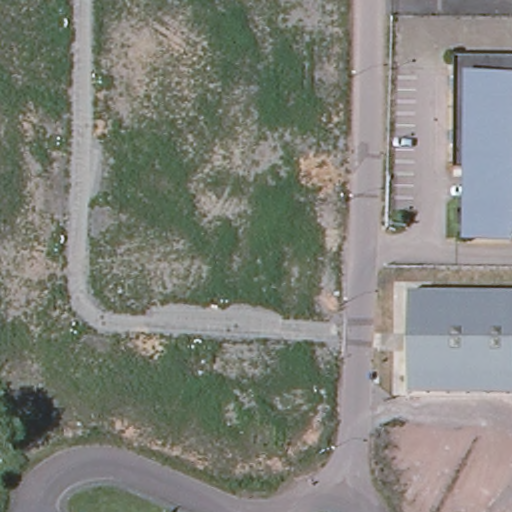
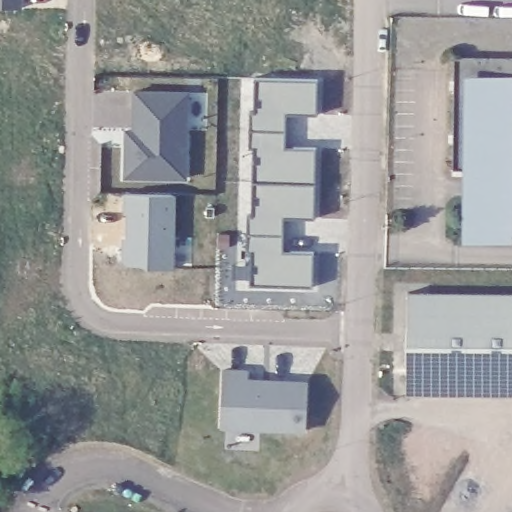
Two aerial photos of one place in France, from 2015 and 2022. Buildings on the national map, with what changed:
new [(0,11),(0,0),(20,0),(20,12),(0,11)]
unchanged [(512,237),(468,236),(469,194),(481,195),(482,168),(452,168),(454,56),(512,58),(512,237)]
new [(250,111),(254,110),(255,76),(317,78),(316,113),(285,112),(285,130),(249,128),(250,111)]
new [(187,94),(188,181),(125,180),(125,133),(133,133),(133,93),(187,94)]
new [(249,128),(285,130),(285,146),(315,146),(314,182),(252,180),(253,146),(248,146),(249,128)]
new [(247,214),(252,214),(252,180),(314,182),(313,217),(283,216),(282,233),(247,232),(247,214)]
new [(175,200),(173,268),(123,267),(125,197),(175,200)]
new [(247,232),(282,233),(282,250),(312,251),(312,285),(250,283),(250,250),(247,250),(247,232)]
unchanged [(415,292),(443,292),(512,293),(512,394),(460,393),(433,393),(410,393),(405,393),(405,346),(405,307),(405,292),(415,292)]
new [(222,369),(247,370),(247,378),(307,381),(305,429),(219,427),(222,369)]

